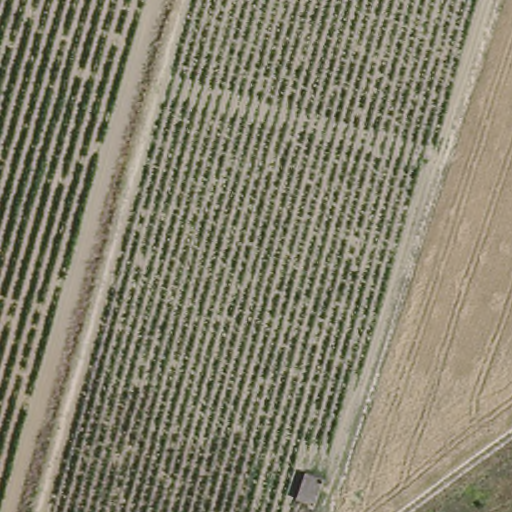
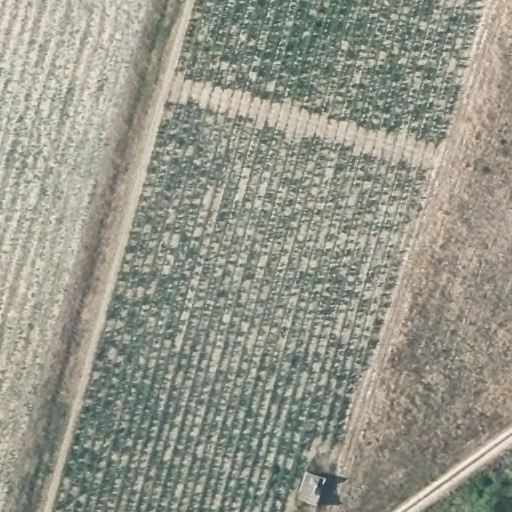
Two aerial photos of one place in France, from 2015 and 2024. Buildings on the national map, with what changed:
unchanged [(297,496),(308,463),(331,475),(320,507),(297,496)]

